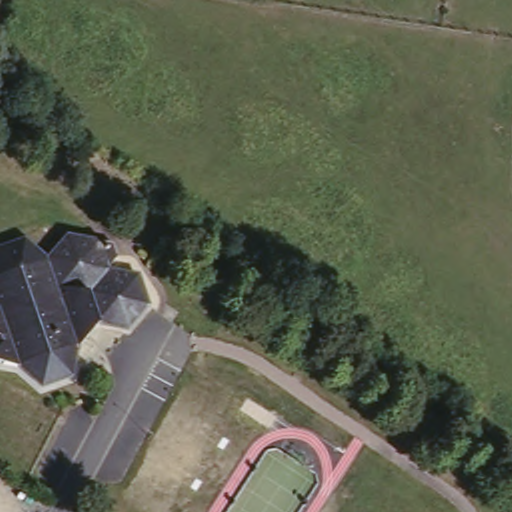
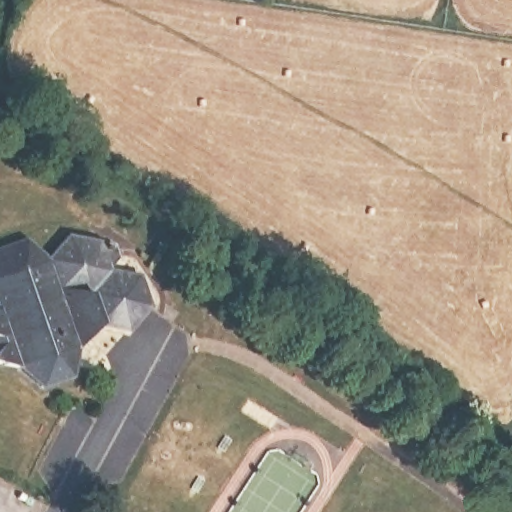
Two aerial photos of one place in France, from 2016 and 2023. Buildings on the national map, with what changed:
unchanged [(44,258),(65,237),(109,244),(114,257),(104,268),(104,269),(134,277),(144,308),(123,331),(95,325),(74,348),(66,374),(38,386),(15,366),(0,362),(0,246),(22,239),(44,258)]

